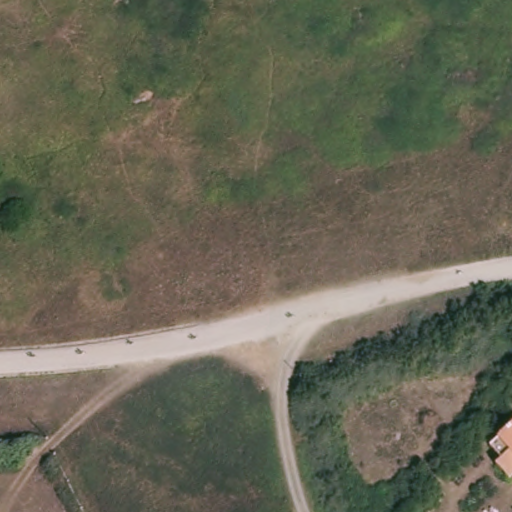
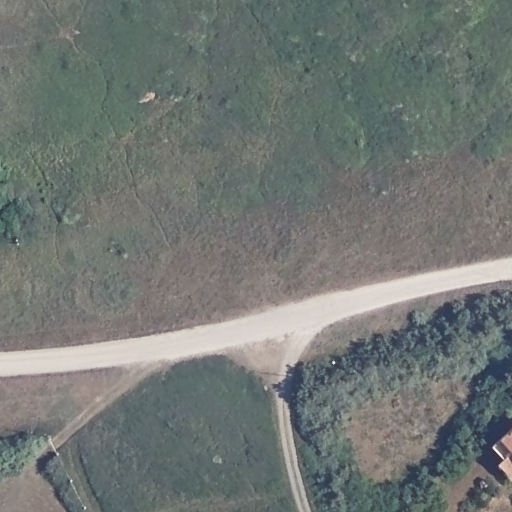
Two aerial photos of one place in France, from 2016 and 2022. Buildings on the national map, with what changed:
unchanged [(500,462),(505,457),(493,444),(512,427),(512,476),(500,462)]

